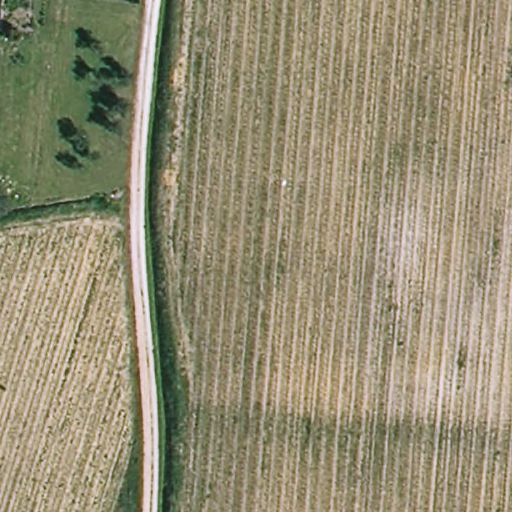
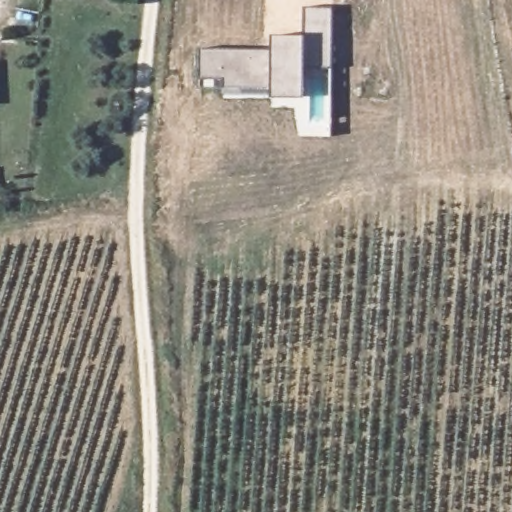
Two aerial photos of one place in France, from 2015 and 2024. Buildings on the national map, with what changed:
new [(201,78),(201,48),(270,48),(270,34),(302,34),(302,6),(330,5),(329,67),(302,67),(302,97),(270,97),(270,88),(222,89),(202,88),(201,78)]

